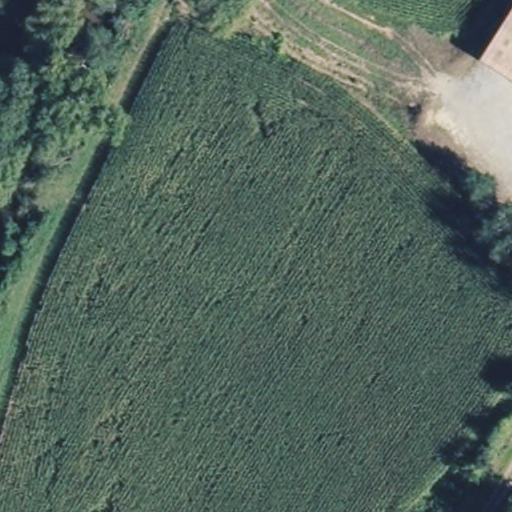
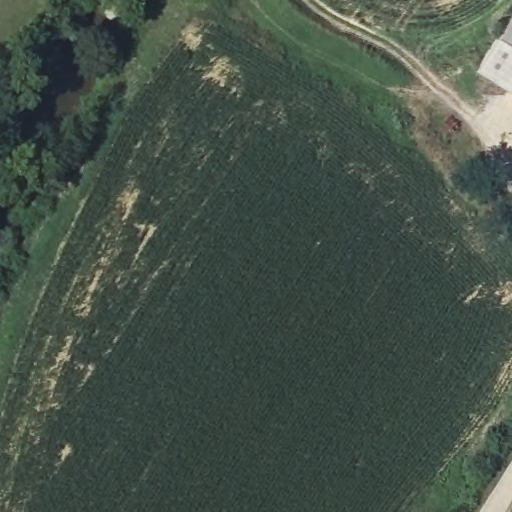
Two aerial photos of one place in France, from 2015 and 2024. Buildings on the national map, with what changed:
unchanged [(512,11),(512,89),(477,66),(512,11)]

